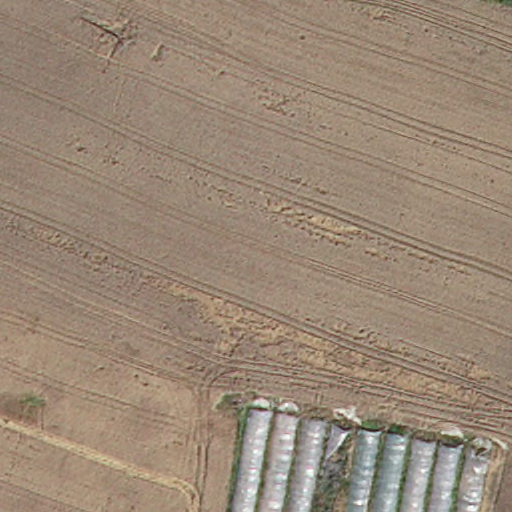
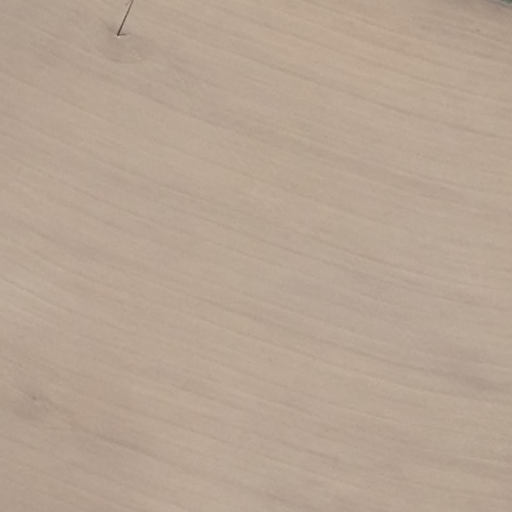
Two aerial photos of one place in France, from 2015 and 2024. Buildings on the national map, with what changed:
demolished [(249,407),(489,453),(479,512),(231,512),(249,407)]

